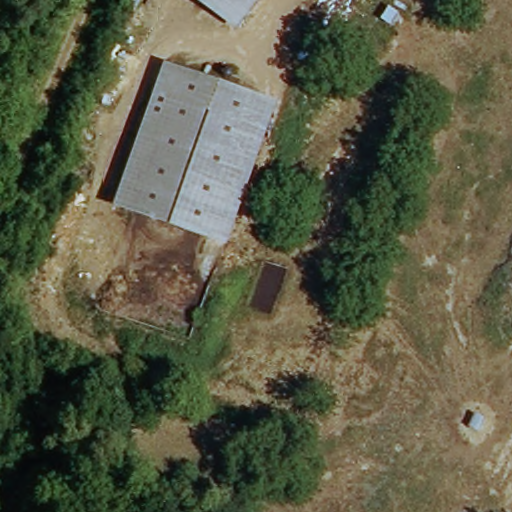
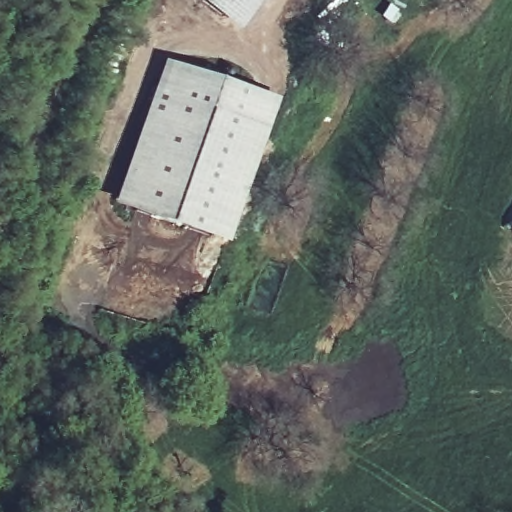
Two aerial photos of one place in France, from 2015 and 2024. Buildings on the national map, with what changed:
unchanged [(206,0),(205,1),(203,0),(206,0)]
unchanged [(205,1),(206,0),(267,0),(247,30),(205,1)]
unchanged [(134,213),(170,100),(152,94),(160,66),(251,94),(207,236),(134,213)]
unchanged [(152,94),(170,100),(134,213),(117,208),(152,94)]
unchanged [(225,242),(207,236),(251,94),(268,99),(225,242)]

